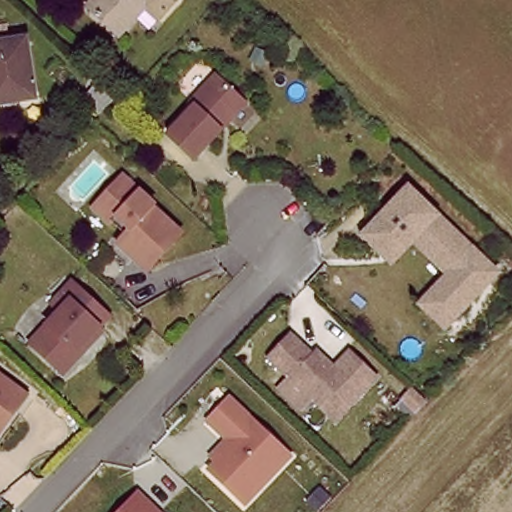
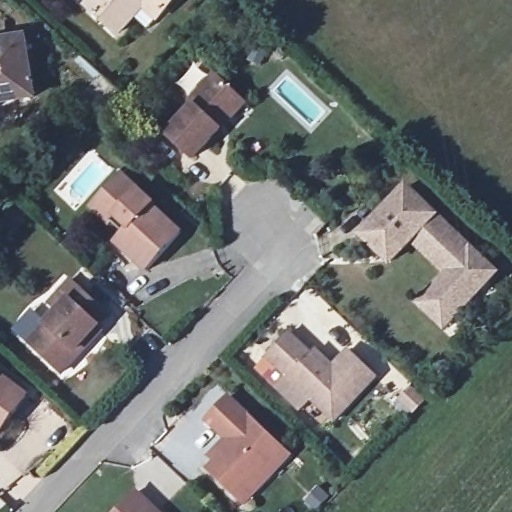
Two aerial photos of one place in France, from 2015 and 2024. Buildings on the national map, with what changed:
unchanged [(119,40),(88,12),(99,0),(181,0),(162,20),(152,30),(139,19),(119,40)]
unchanged [(28,40),(40,96),(0,105),(0,45),(28,40)]
unchanged [(167,137),(192,111),(186,103),(213,73),(240,96),(246,101),(221,127),(191,158),(167,137)]
unchanged [(107,224),(86,206),(118,170),(150,200),(145,206),(176,235),(146,269),(115,242),(125,231),(111,219),(107,224)]
unchanged [(416,316),(432,299),(451,278),(415,245),(395,268),(383,258),(365,241),(408,192),(500,276),(458,322),(442,340),(416,316)]
unchanged [(103,318),(92,329),(97,334),(62,373),(27,343),(57,311),(48,302),(57,294),(66,285),(103,318)]
unchanged [(379,379),(338,424),(269,361),(290,337),(313,358),(317,354),(335,369),(350,353),(379,379)]
unchanged [(25,400),(0,428),(0,376),(25,400)]
unchanged [(233,488),(216,472),(230,456),(225,451),(233,441),(213,423),(232,401),(294,455),(265,487),(250,504),(233,488)]
unchanged [(140,489),(163,512),(118,512),(140,489)]

